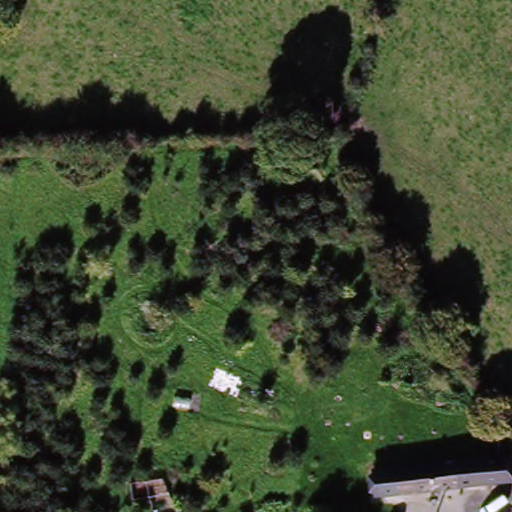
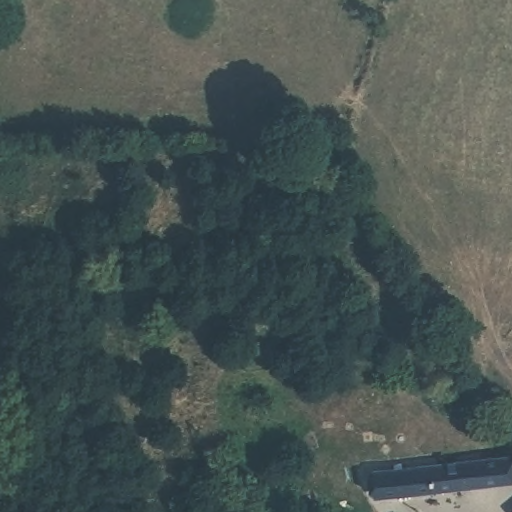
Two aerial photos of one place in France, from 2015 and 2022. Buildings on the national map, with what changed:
unchanged [(512,485),(379,498),(375,472),(510,459),(512,478),(512,485)]

